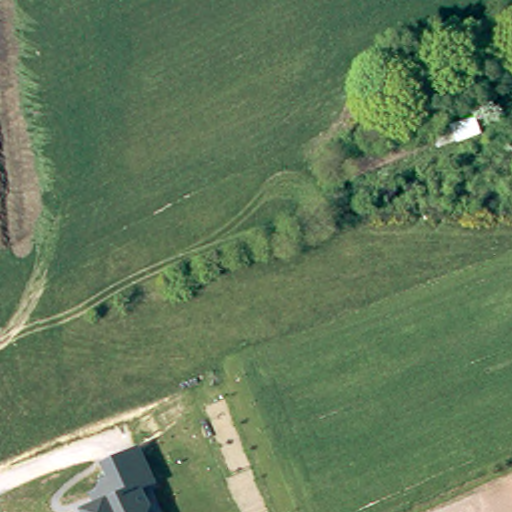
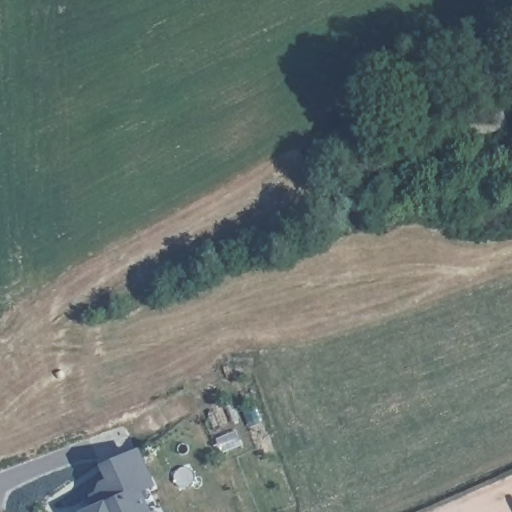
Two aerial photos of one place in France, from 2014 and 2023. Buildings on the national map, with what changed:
unchanged [(434,125),(439,137),(354,172),(349,161),(434,125)]
unchanged [(87,497),(98,492),(95,486),(105,482),(99,467),(139,450),(156,487),(142,492),(150,511),(150,512),(84,512),(91,510),(87,497)]

